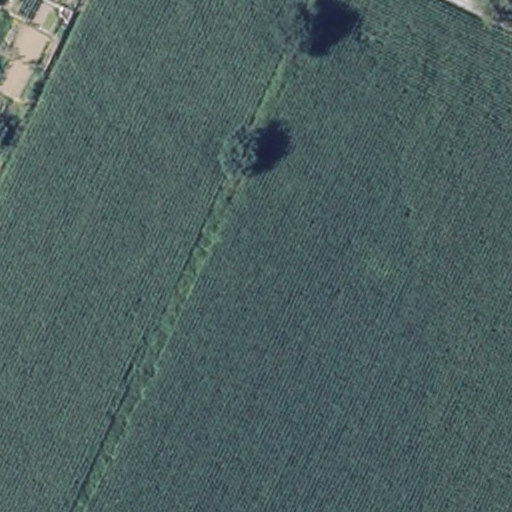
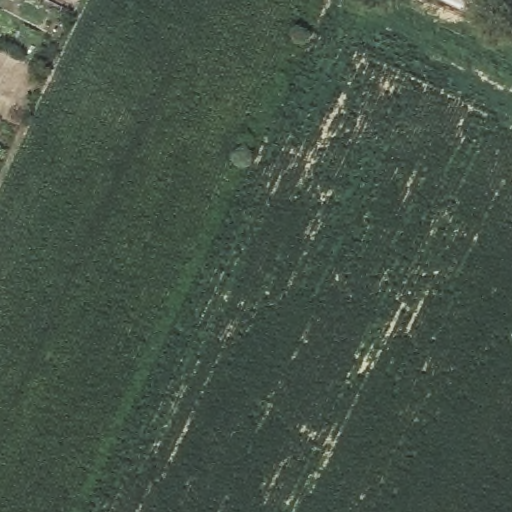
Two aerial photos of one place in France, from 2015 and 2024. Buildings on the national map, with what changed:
[]

